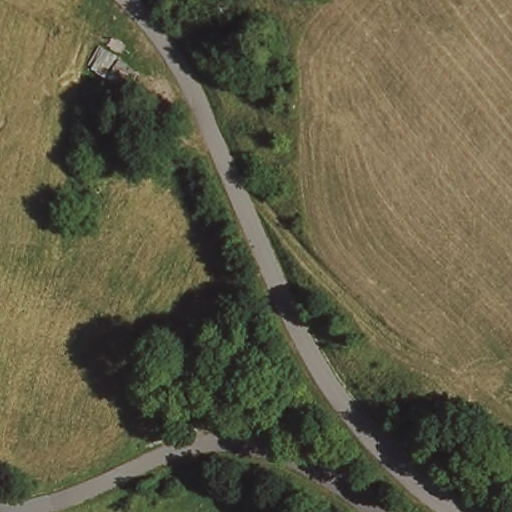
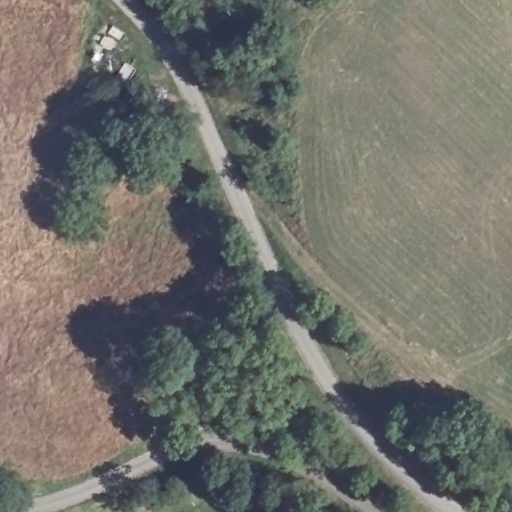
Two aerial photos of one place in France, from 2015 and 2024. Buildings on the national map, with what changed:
[]

